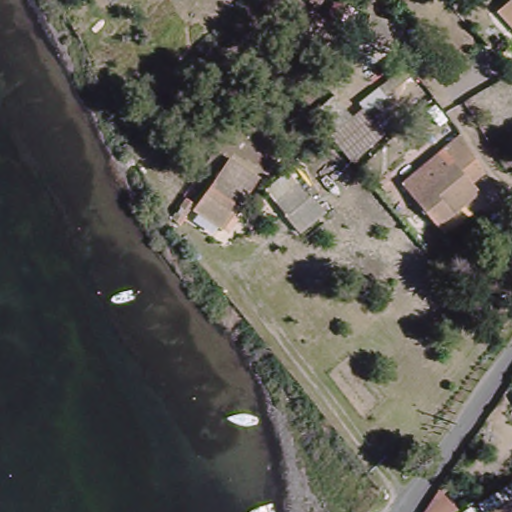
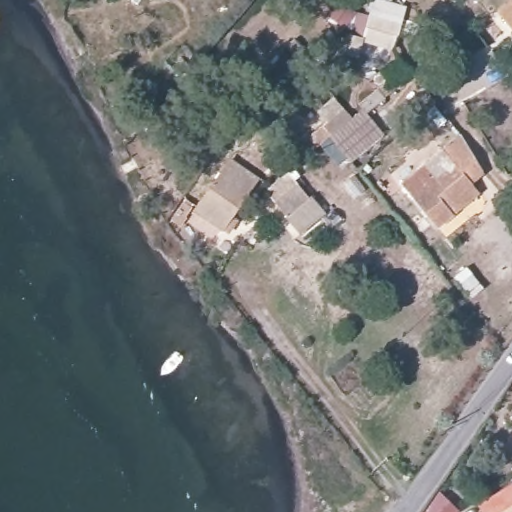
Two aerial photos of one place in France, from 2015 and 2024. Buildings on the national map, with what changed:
unchanged [(498,11),(510,0),(512,0),(512,26),(498,11)]
unchanged [(389,47),(366,40),(369,28),(393,35),(389,47)]
unchanged [(414,73),(399,83),(394,76),(408,64),(414,73)]
unchanged [(330,136),(333,133),(324,124),(345,107),(353,116),(349,119),(369,144),(349,160),(330,136)]
unchanged [(482,168),(469,179),(480,191),(438,226),(402,183),(461,134),(482,168)]
unchanged [(238,177),(236,182),(246,190),(224,223),(198,206),(224,167),(238,177)]
unchanged [(275,201),(297,183),(308,197),(286,214),(275,201)]
unchanged [(443,496),(452,505),(445,512),(427,512),(443,496)]
unchanged [(481,511),(506,497),(512,507),(503,512),(481,512),(481,511)]

